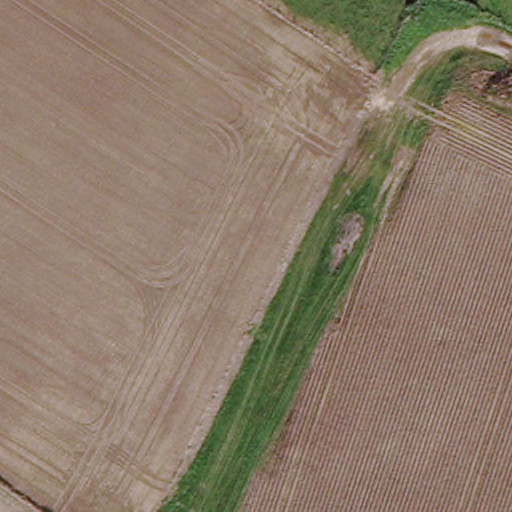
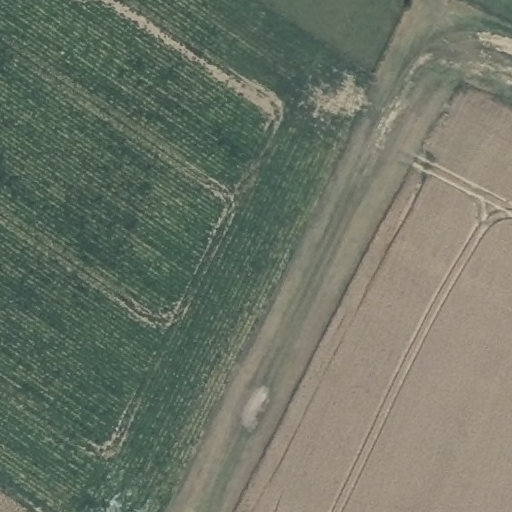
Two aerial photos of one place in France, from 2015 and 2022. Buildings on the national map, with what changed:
[]

